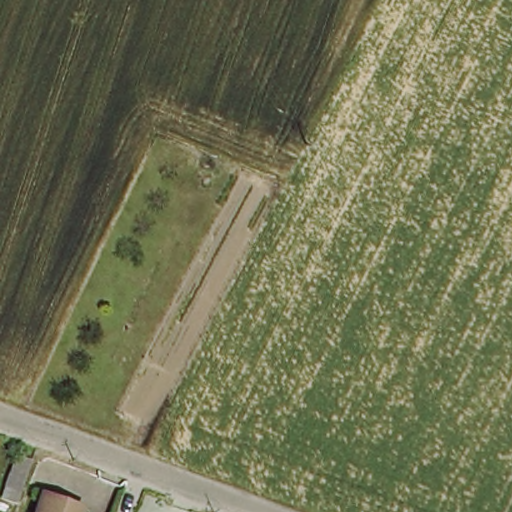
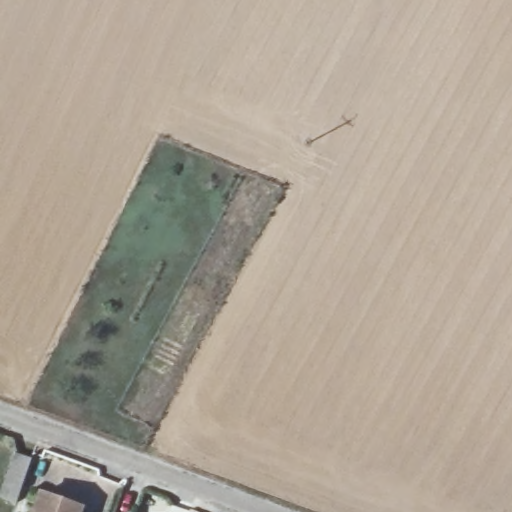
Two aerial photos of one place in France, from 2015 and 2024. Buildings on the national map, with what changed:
unchanged [(0,482),(11,450),(30,456),(19,488),(0,482)]
unchanged [(78,505),(76,512),(35,512),(42,492),(78,505)]

